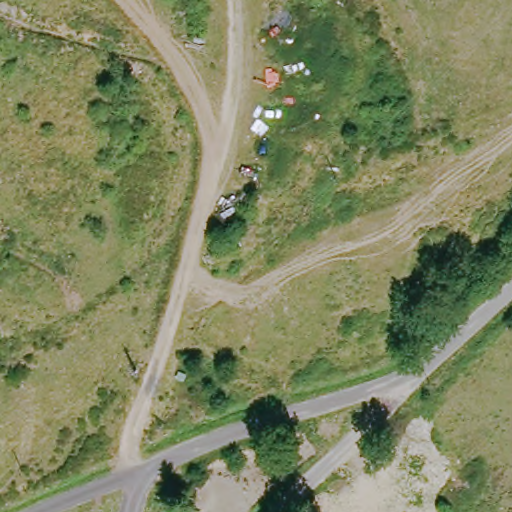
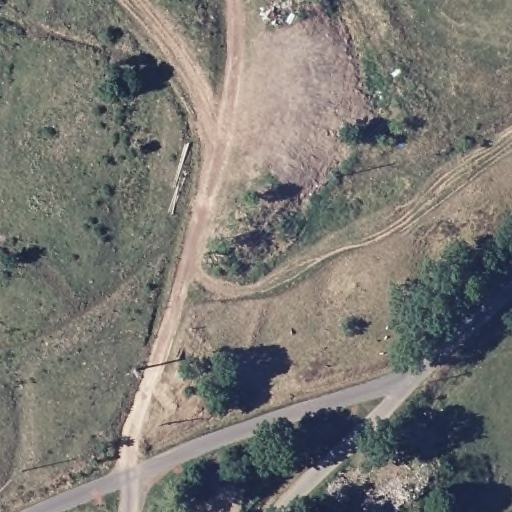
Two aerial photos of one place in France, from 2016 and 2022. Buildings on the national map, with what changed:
unchanged [(167,512),(167,511),(171,512),(167,512)]

